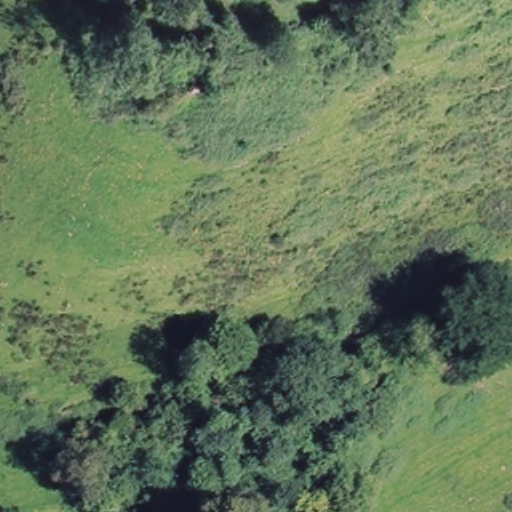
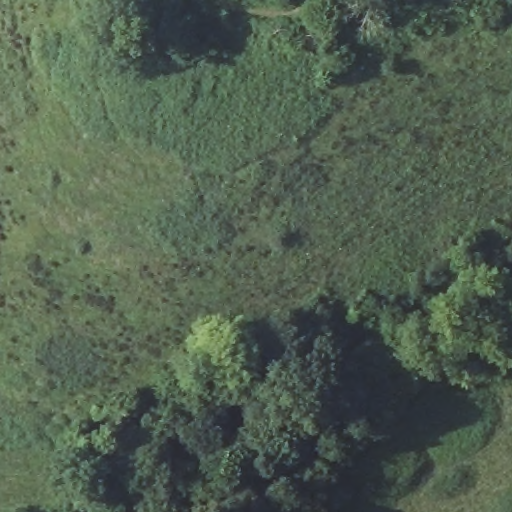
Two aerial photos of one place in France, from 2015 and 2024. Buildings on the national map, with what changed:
unchanged [(160,45),(140,24),(160,0),(170,0),(186,14),(171,32),(160,45)]

